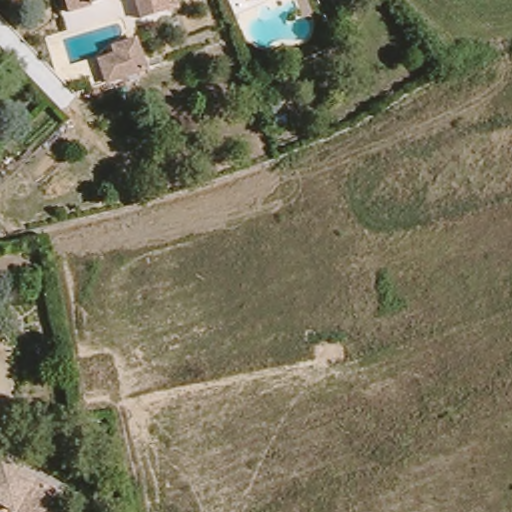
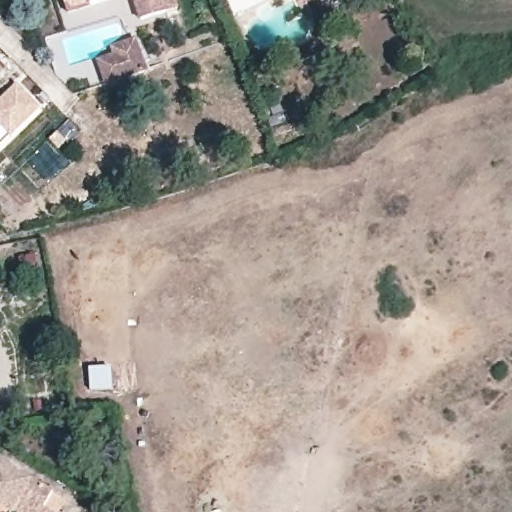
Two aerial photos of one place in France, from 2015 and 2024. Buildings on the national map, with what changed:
unchanged [(105,2),(59,16),(54,0),(105,0),(105,2)]
unchanged [(154,15),(131,23),(124,0),(162,0),(166,12),(154,15)]
unchanged [(108,82),(99,59),(116,53),(113,46),(136,38),(147,68),(108,82)]
new [(0,101),(15,87),(38,111),(10,138),(0,127),(0,101)]
unchanged [(42,511),(44,512),(0,512),(0,465),(51,496),(42,511)]

